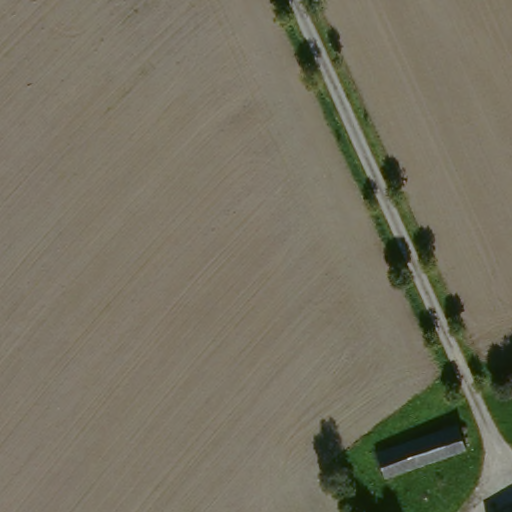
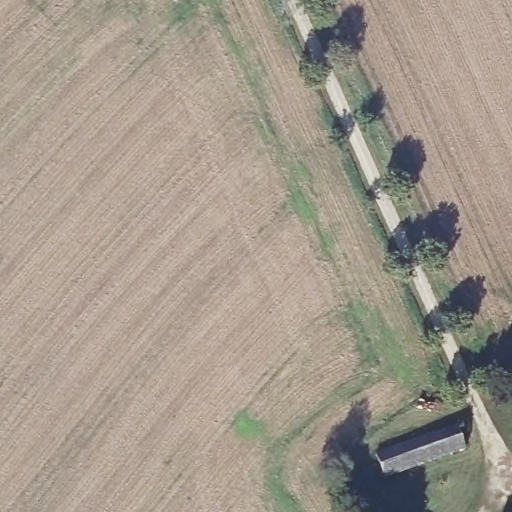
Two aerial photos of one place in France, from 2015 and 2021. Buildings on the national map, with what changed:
unchanged [(454,422),(464,448),(386,477),(376,451),(454,422)]

